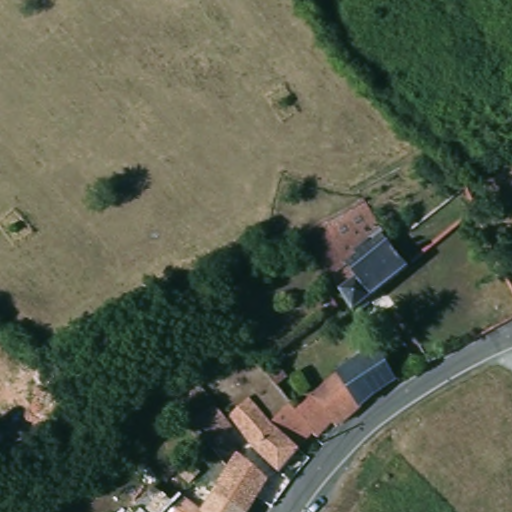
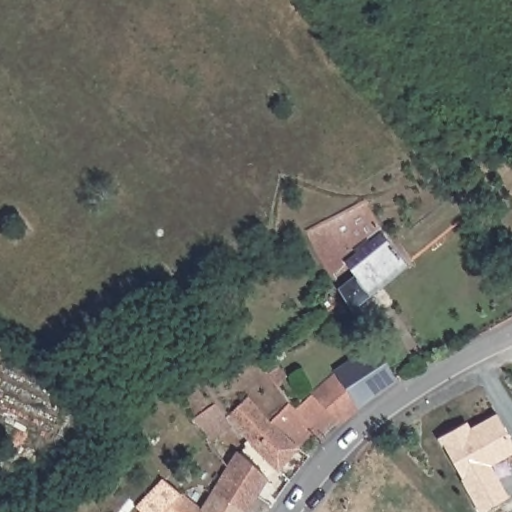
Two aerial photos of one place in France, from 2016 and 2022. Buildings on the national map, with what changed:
unchanged [(339,287),(355,273),(348,258),(381,232),(406,265),(372,293),(355,309),(339,287)]
unchanged [(336,364),(366,347),(378,341),(395,381),(372,395),(340,423),(313,390),(336,364)]
unchanged [(285,372),(278,380),(256,360),(263,352),(285,372)]
unchanged [(232,413),(249,396),(273,420),(291,401),(297,408),(313,390),(340,423),(323,442),(313,432),(299,448),(279,471),(253,443),(232,413)]
unchanged [(231,425),(208,443),(190,420),(214,402),(231,425)]
new [(497,512),(483,512),(432,455),(456,434),(461,440),(484,419),(512,450),(489,470),(512,496),(512,499),(502,508),(497,512)]
unchanged [(206,461),(198,470),(189,480),(180,470),(190,460),(198,451),(206,461)]
unchanged [(180,493),(199,510),(212,492),(224,473),(227,469),(228,467),(238,452),(267,479),(255,498),(246,512),(161,512),(172,501),(180,493)]
unchanged [(132,501),(150,480),(172,501),(161,512),(133,512),(138,505),(132,501)]

